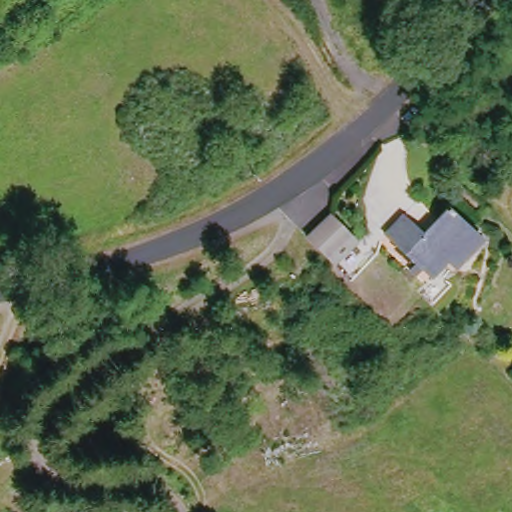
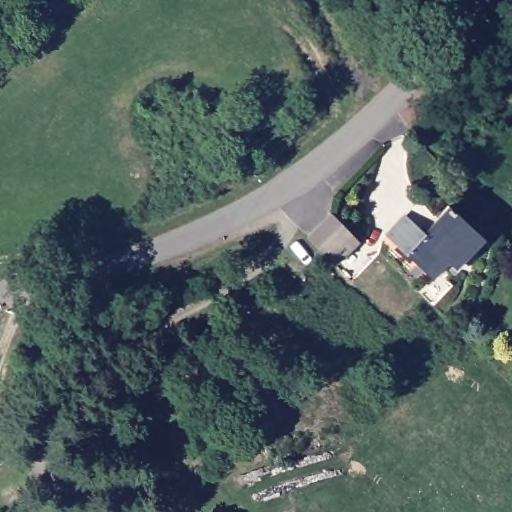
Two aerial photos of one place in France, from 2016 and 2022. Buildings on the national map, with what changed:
unchanged [(451,263),(445,257),(429,274),(388,235),(405,216),(421,230),(444,205),(478,237),(451,263)]
unchanged [(327,212),(350,235),(327,260),(317,249),(304,236),(327,212)]

